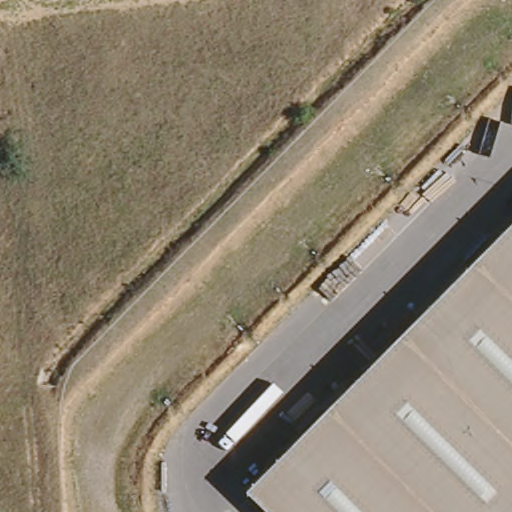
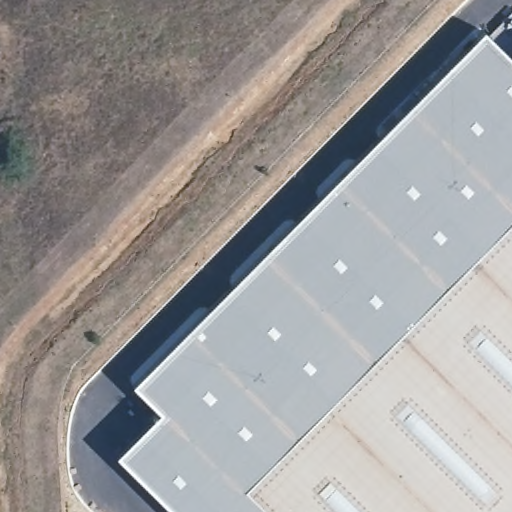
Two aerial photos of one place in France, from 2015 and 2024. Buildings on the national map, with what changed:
new [(132,385),(483,30),(511,58),(512,57),(512,219),(242,490),(265,512),(173,512),(116,455),(160,411),(132,385)]
unchanged [(512,512),(265,512),(242,490),(512,219),(512,512)]

